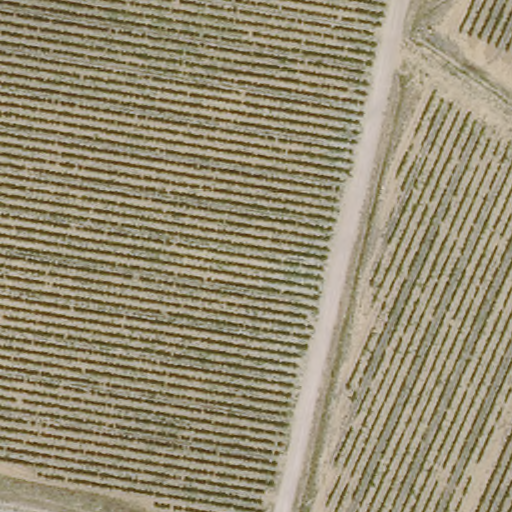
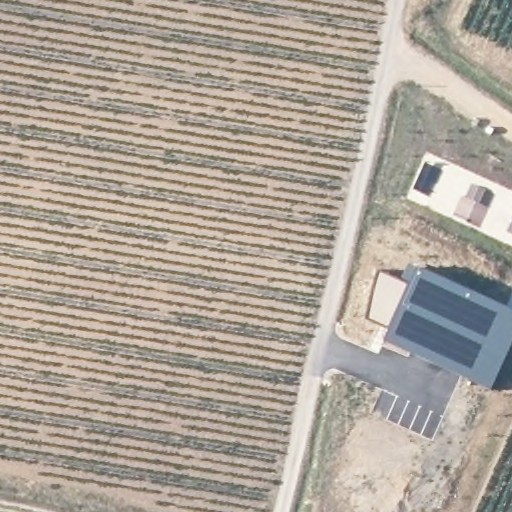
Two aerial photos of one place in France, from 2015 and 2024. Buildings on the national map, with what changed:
new [(456,215),(465,195),(476,200),(482,189),(495,195),(480,226),(456,215)]
new [(400,280),(407,263),(416,266),(506,305),(512,291),(512,343),(491,390),(382,340),(387,328),(408,283),(400,280)]
new [(378,271),(400,280),(408,283),(387,328),(366,318),(378,271)]

